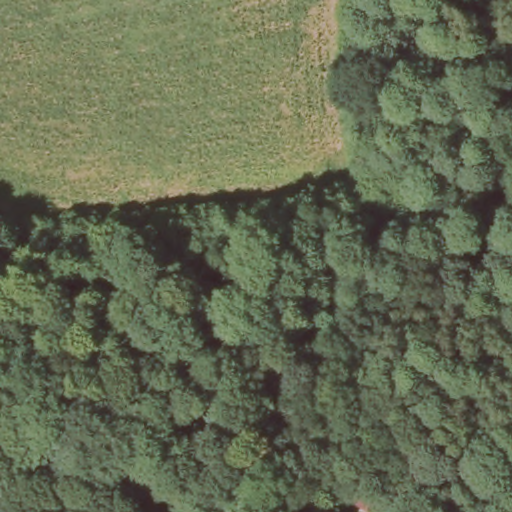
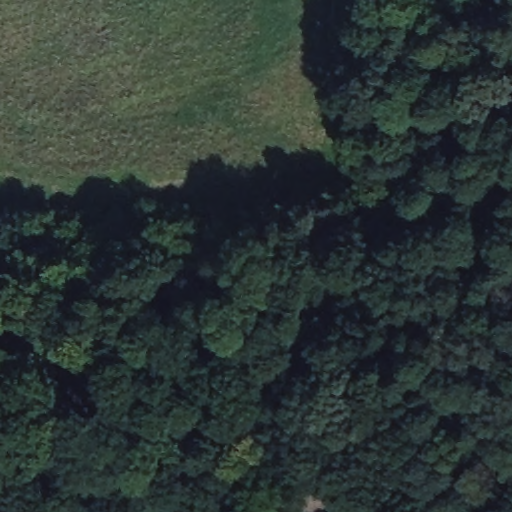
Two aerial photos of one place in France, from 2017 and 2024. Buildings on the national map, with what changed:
unchanged [(397,494),(389,512),(368,512),(329,489),(338,464),(397,494)]

